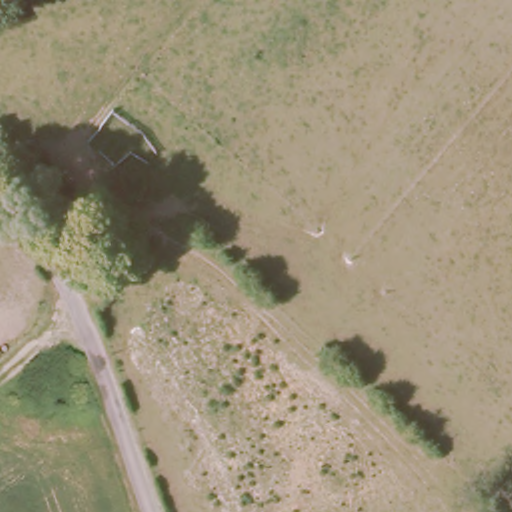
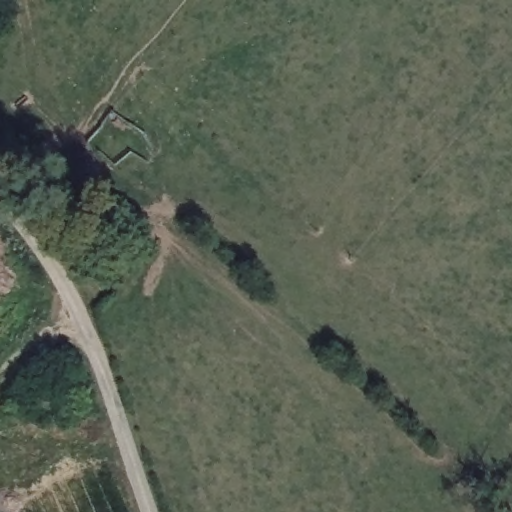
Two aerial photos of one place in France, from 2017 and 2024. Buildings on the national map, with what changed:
unchanged [(40,152),(75,189),(57,207),(22,170),(40,152)]
unchanged [(52,385),(70,403),(27,441),(12,423),(52,385)]

